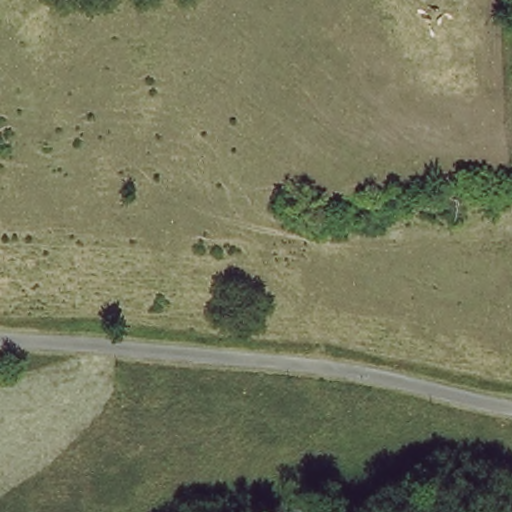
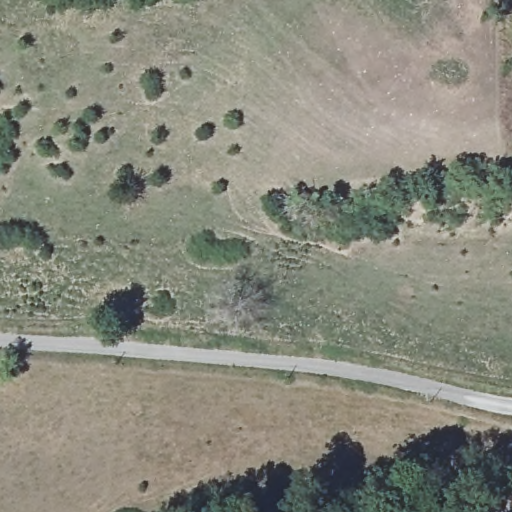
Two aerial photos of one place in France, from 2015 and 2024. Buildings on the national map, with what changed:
[]

